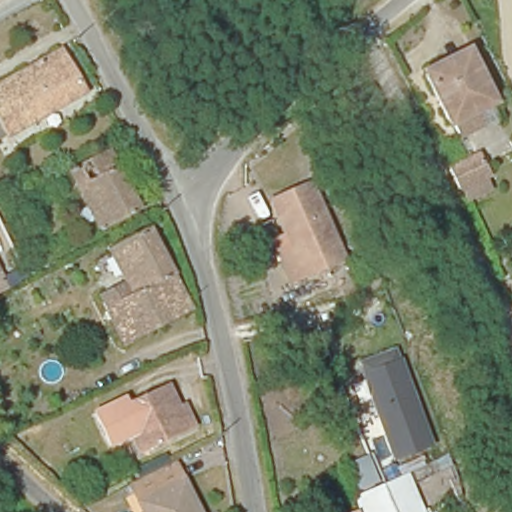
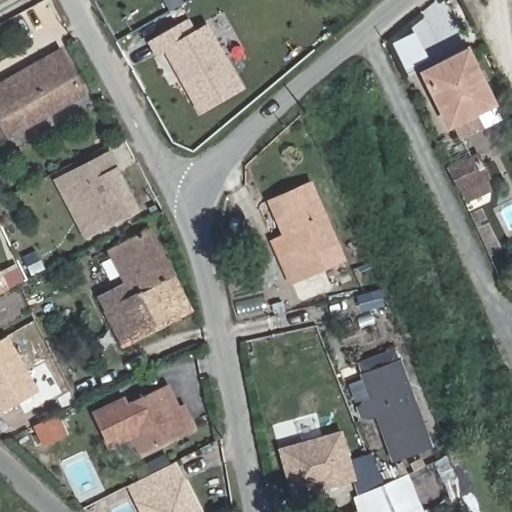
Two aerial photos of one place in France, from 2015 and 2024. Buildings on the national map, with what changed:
new [(190,20),(198,34),(210,27),(243,88),(202,110),(170,50),(161,54),(154,39),(190,20)]
unchanged [(86,99),(10,139),(0,146),(0,88),(61,54),(86,99)]
unchanged [(463,137),(459,139),(452,126),(448,128),(421,73),(430,69),(445,60),(449,66),(462,60),(477,89),(482,86),(487,84),(496,105),(493,108),(475,115),(480,128),(463,137)]
unchanged [(110,150),(140,209),(101,230),(71,170),(110,150)]
unchanged [(472,166),(479,163),(489,181),(481,184),(459,194),(450,176),(472,166)]
unchanged [(294,285),(274,240),(286,235),(279,220),(284,218),(279,208),(313,191),(344,260),(294,285)]
unchanged [(172,281),(106,316),(100,305),(128,289),(110,254),(150,233),(174,279),(172,281)]
unchanged [(0,293),(0,272),(9,289),(0,293)]
unchanged [(172,281),(190,314),(124,351),(106,316),(172,281)]
new [(39,391),(1,413),(0,411),(0,341),(9,337),(39,391)]
unchanged [(365,382),(358,359),(399,346),(434,446),(426,449),(397,459),(393,460),(371,399),(358,403),(354,386),(365,382)]
unchanged [(178,403),(183,399),(188,409),(195,424),(141,452),(134,439),(130,433),(138,428),(128,408),(125,402),(167,382),(178,403)]
unchanged [(123,397),(125,402),(128,408),(138,428),(130,433),(134,439),(111,448),(93,411),(123,397)]
new [(34,428),(60,416),(69,434),(43,446),(34,428)]
new [(342,429),(352,461),(346,463),(353,481),(291,498),(277,449),(342,429)]
unchanged [(358,511),(353,496),(357,492),(346,463),(372,453),(384,479),(402,472),(397,459),(426,449),(434,446),(442,456),(409,473),(425,512),(355,512),(358,511)]
unchanged [(177,464),(200,512),(143,512),(130,488),(177,464)]

